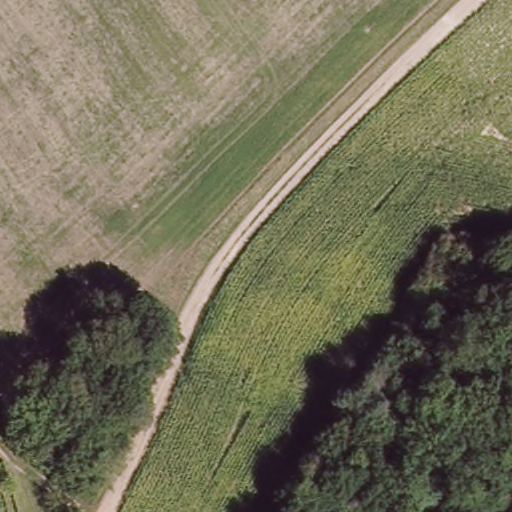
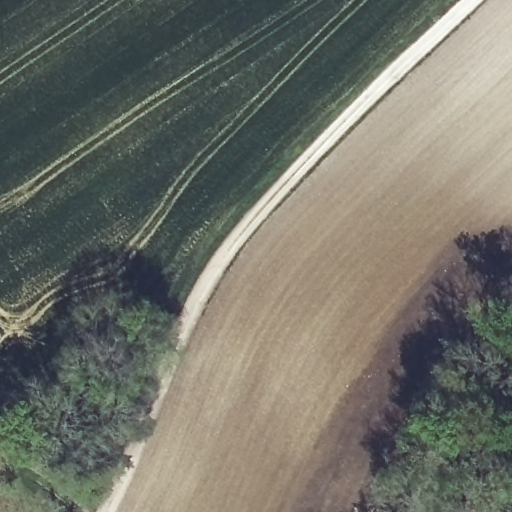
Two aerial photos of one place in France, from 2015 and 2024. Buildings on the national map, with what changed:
unchanged [(94,436),(80,450),(71,439),(84,426),(94,436)]

